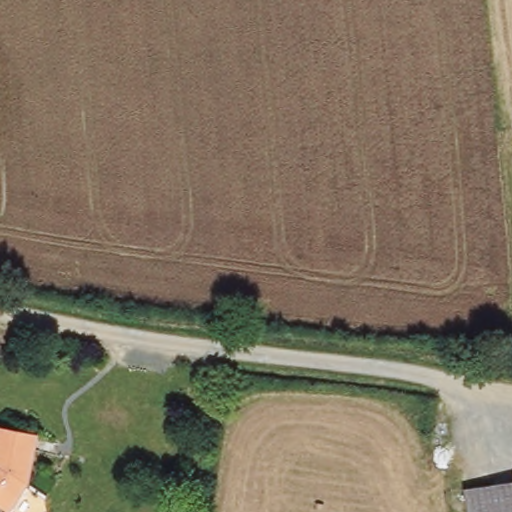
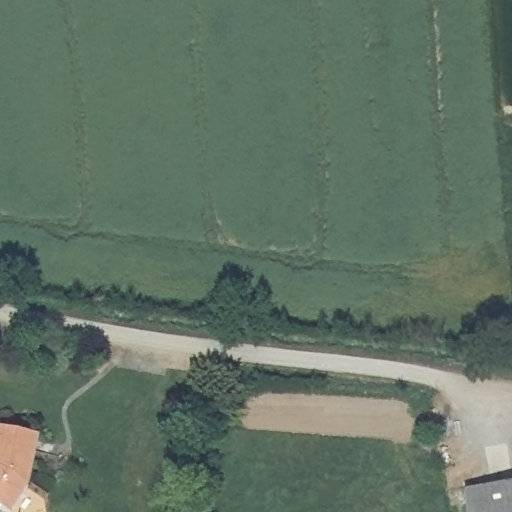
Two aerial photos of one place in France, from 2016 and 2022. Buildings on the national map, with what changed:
unchanged [(32,481),(13,509),(0,501),(0,422),(40,430),(32,481)]
unchanged [(466,488),(512,481),(512,512),(470,512),(466,488)]

